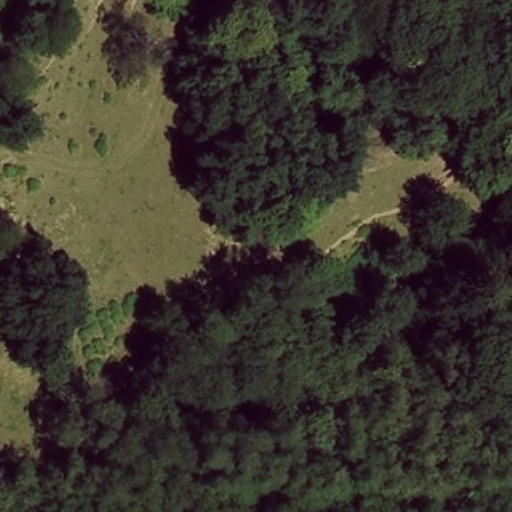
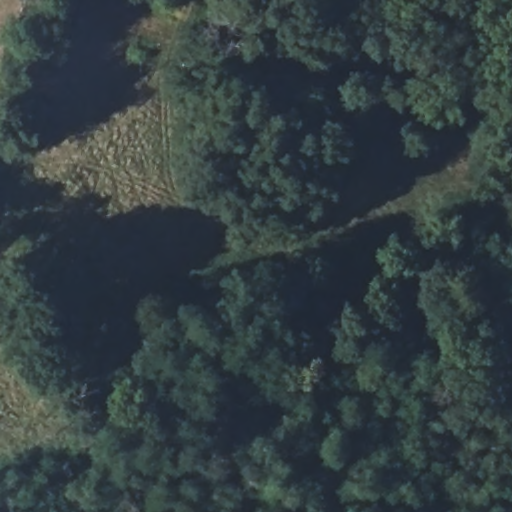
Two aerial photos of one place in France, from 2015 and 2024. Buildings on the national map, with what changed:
unchanged [(35,167),(21,211),(35,217),(25,247),(0,238),(0,173),(6,156),(35,167)]

